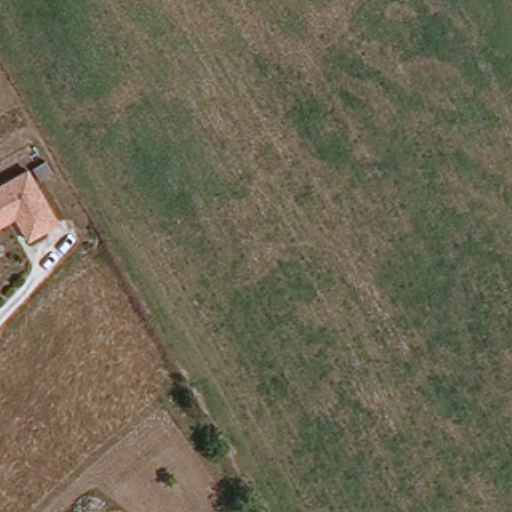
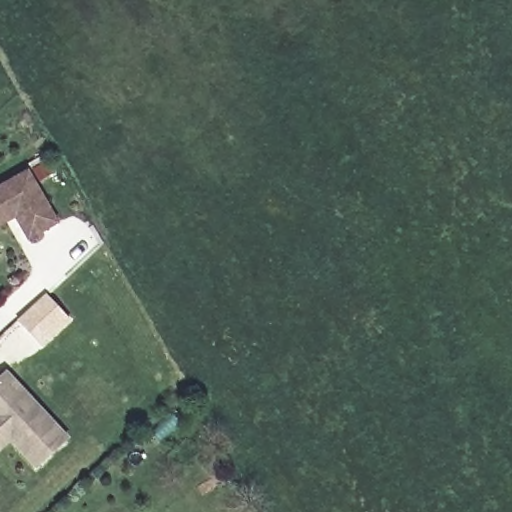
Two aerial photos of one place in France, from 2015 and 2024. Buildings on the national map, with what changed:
unchanged [(31,172),(60,225),(30,241),(17,218),(0,228),(0,189),(31,172)]
new [(46,299),(50,304),(54,301),(68,316),(62,321),(66,326),(43,348),(20,323),(46,299)]
new [(68,440),(37,468),(12,440),(0,452),(0,379),(6,373),(68,440)]

